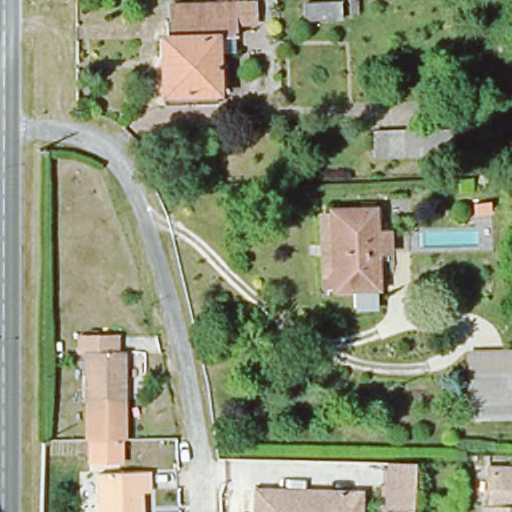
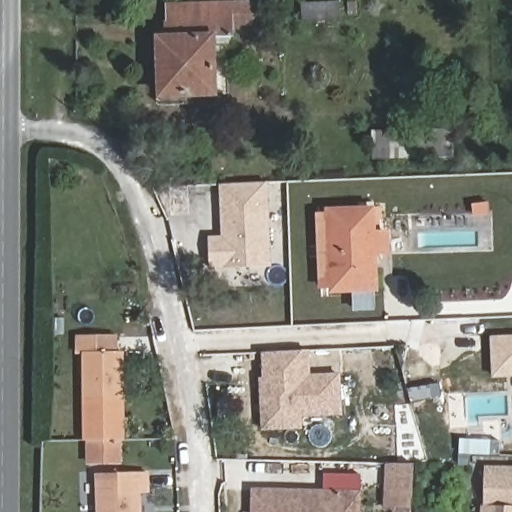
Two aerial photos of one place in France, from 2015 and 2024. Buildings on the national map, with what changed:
unchanged [(174,18),(173,2),(241,0),(258,0),(258,18),(237,19),(238,32),(219,33),(222,99),(166,100),(164,34),(171,34),(170,19),(174,18)]
unchanged [(304,5),(342,4),(343,20),(303,23),(304,5)]
unchanged [(384,159),(383,132),(463,130),(464,156),(384,159)]
new [(220,183),(268,183),(272,264),(210,266),(209,237),(222,236),(220,183)]
unchanged [(329,216),(382,215),(382,238),(387,238),(388,257),(376,258),(377,294),(333,296),(332,291),(322,291),(318,221),(330,220),(329,216)]
unchanged [(117,353),(123,352),(123,400),(86,400),(86,353),(78,353),(79,337),(117,337),(117,353)]
new [(490,338),(512,337),(512,377),(493,378),(490,338)]
demolished [(503,363),(512,363),(512,376),(470,376),(470,351),(503,350),(503,363)]
new [(343,416),(303,418),(303,430),(263,431),(260,355),(311,353),(310,376),(340,375),(343,416)]
new [(87,465),(87,440),(84,440),(86,400),(123,400),(125,439),(121,440),(122,464),(87,465)]
unchanged [(487,507),(488,465),(488,462),(512,463),(512,512),(478,512),(478,507),(487,507)]
unchanged [(412,465),(410,510),(385,508),(387,463),(412,465)]
unchanged [(149,493),(140,492),(141,512),(99,512),(97,474),(149,472),(149,493)]
unchanged [(342,512),(251,512),(252,490),(342,492),(342,512)]

